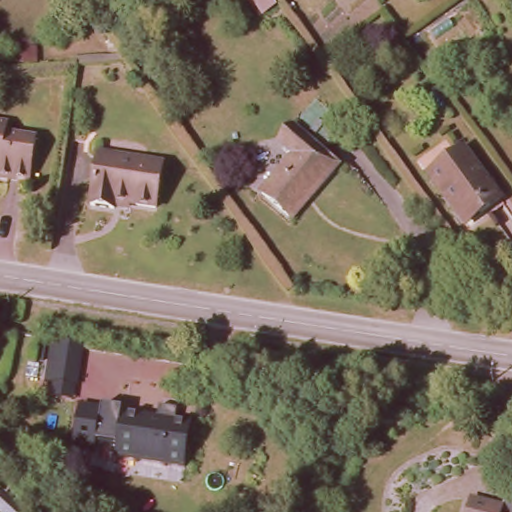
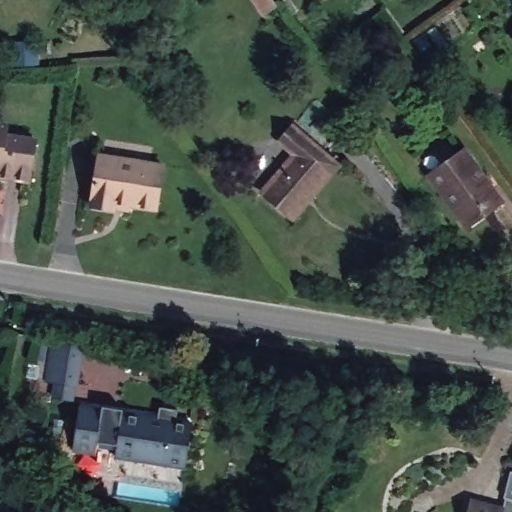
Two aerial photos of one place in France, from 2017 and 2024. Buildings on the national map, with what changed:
unchanged [(274,5),(258,16),(247,0),(271,0),(274,5)]
unchanged [(420,38),(430,52),(419,59),(410,45),(420,38)]
unchanged [(17,48),(32,47),(37,47),(38,62),(33,62),(18,63),(17,48)]
unchanged [(287,214),(261,191),(293,154),(278,140),(314,98),(345,125),(322,152),(337,165),(311,194),(291,217),(287,214)]
unchanged [(4,140),(33,145),(28,184),(0,179),(0,129),(5,130),(4,140)]
unchanged [(432,169),(468,144),(504,195),(469,221),(432,169)]
unchanged [(113,204),(89,200),(98,149),(161,160),(154,203),(126,198),(125,206),(113,204)]
unchanged [(79,380),(50,376),(55,339),(85,343),(79,380)]
unchanged [(115,449),(116,445),(95,442),(101,407),(123,411),(123,414),(189,424),(183,467),(133,459),(114,456),(115,449)]
unchanged [(501,503),(498,512),(465,512),(469,495),(501,503)]

